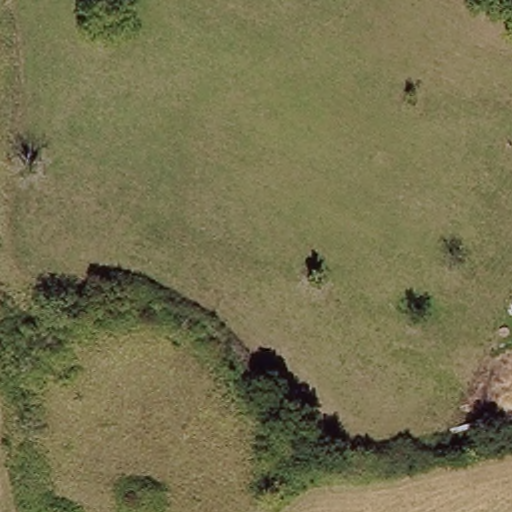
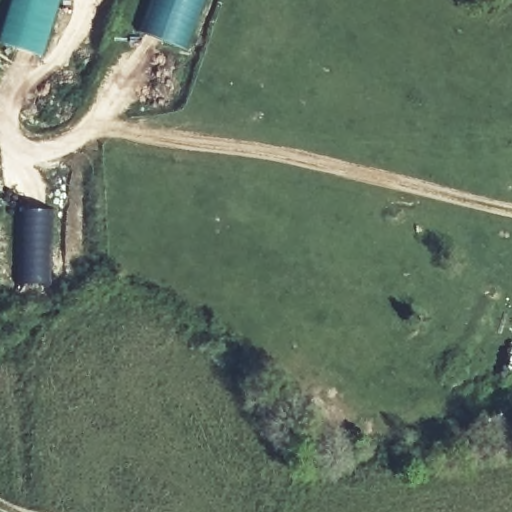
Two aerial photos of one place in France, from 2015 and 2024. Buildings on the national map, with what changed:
new [(62,0),(44,57),(3,45),(17,0),(62,0)]
new [(208,0),(190,50),(143,34),(156,0),(208,0)]

